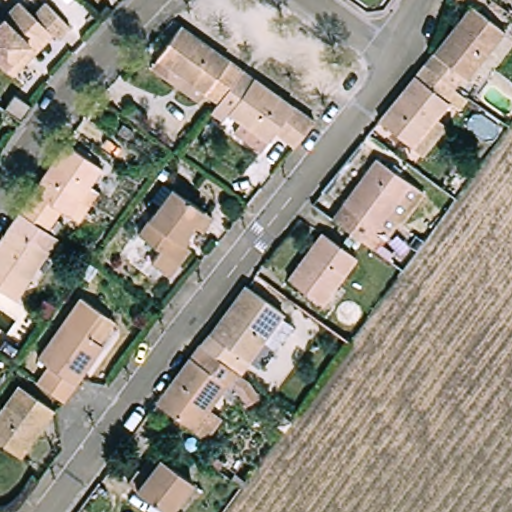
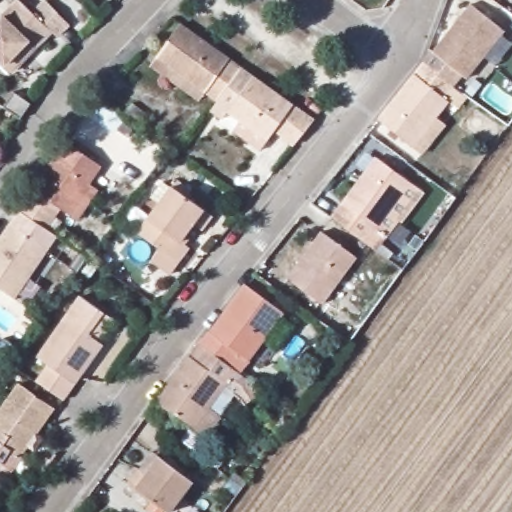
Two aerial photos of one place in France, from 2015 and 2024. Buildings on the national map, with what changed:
unchanged [(0,50),(0,19),(18,0),(24,0),(37,10),(46,0),(50,0),(69,17),(60,30),(51,25),(14,63),(0,50)]
unchanged [(476,14),(509,39),(475,81),(466,77),(457,91),(425,66),(439,54),(476,14)]
unchanged [(229,100),(166,52),(185,24),(249,70),(229,100)]
unchanged [(421,157),(412,149),(377,122),(425,66),(457,91),(463,95),(454,105),(449,101),(434,119),(444,127),(421,157)]
unchanged [(239,132),(246,122),(237,113),(232,120),(220,112),(229,100),(249,70),(320,121),(301,144),(281,131),(273,140),(264,152),(239,132)]
unchanged [(3,106),(14,90),(33,104),(20,119),(3,106)]
unchanged [(99,163),(66,209),(58,206),(44,225),(19,207),(63,140),(99,163)]
unchanged [(377,228),(386,236),(380,246),(391,256),(386,262),(329,221),(375,158),(423,192),(400,224),(387,215),(377,228)]
unchanged [(183,238),(192,244),(170,276),(151,263),(161,249),(139,234),(171,187),(212,215),(201,232),(191,226),(183,238)]
unchanged [(0,294),(0,235),(19,207),(44,225),(54,232),(8,299),(0,294)]
unchanged [(325,306),(295,282),(330,237),(360,261),(325,306)]
unchanged [(274,313),(232,368),(199,344),(243,289),(274,313)]
unchanged [(41,358),(84,297),(102,311),(114,319),(98,343),(103,346),(63,402),(37,384),(50,364),(41,358)]
unchanged [(156,401),(199,344),(232,368),(235,371),(225,384),(218,379),(186,422),(156,401)]
unchanged [(0,415),(22,383),(55,407),(18,460),(0,446),(0,415)]
unchanged [(199,486),(182,512),(165,512),(137,493),(147,477),(158,460),(168,465),(170,464),(199,486)]

